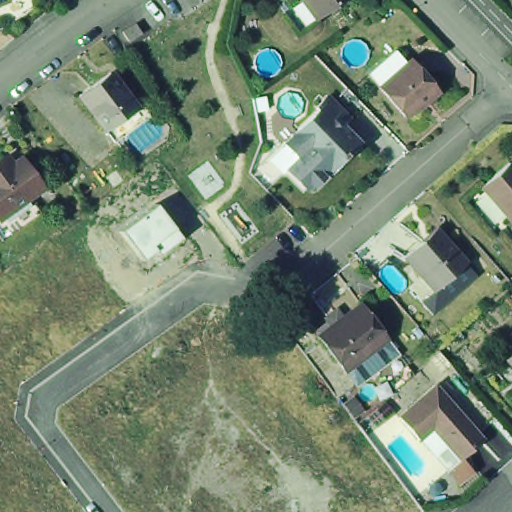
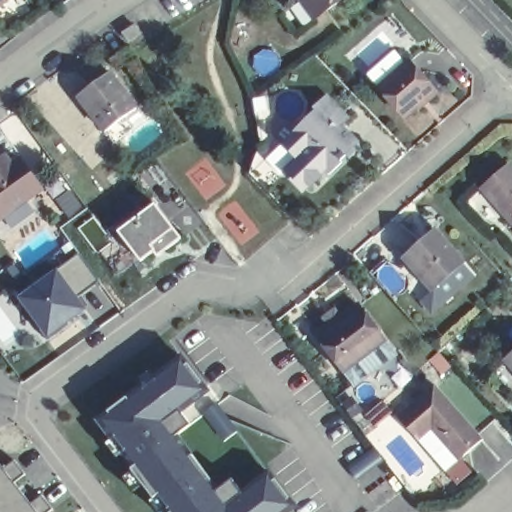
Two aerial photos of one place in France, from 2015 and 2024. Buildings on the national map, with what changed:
unchanged [(0,4),(0,0),(9,0),(0,4)]
unchanged [(317,17),(305,0),(341,0),(317,17)]
unchanged [(131,24),(136,33),(123,41),(118,32),(131,24)]
unchanged [(412,54),(438,84),(408,110),(381,80),(412,54)]
unchanged [(110,69),(136,104),(124,112),(106,125),(80,91),(96,80),(110,69)]
unchanged [(311,118),(309,116),(320,105),(341,126),(333,133),(350,150),(332,168),(329,166),(317,178),(284,144),(311,118)]
unchanged [(6,151),(13,160),(21,153),(42,183),(0,214),(0,156),(6,151)]
unchanged [(509,161),(512,165),(512,222),(481,186),(509,161)]
unchanged [(154,204),(173,228),(180,236),(157,254),(153,249),(142,258),(120,230),(154,204)]
unchanged [(437,227),(441,231),(465,259),(434,287),(422,274),(405,254),(423,239),(437,227)]
new [(78,253),(98,281),(78,296),(87,308),(47,339),(15,296),(56,267),(78,253)]
unchanged [(356,299),(381,332),(341,363),(314,329),(356,299)]
unchanged [(512,341),(512,368),(499,352),(512,341)]
new [(168,512),(156,495),(153,497),(131,467),(133,466),(96,419),(108,411),(128,397),(183,353),(188,363),(203,383),(211,392),(183,414),(191,425),(178,434),(193,454),(211,481),(218,491),(232,480),(241,492),(270,469),(276,478),(291,499),(299,507),(293,512),(168,512)]
unchanged [(430,382),(477,436),(454,457),(426,425),(413,437),(393,414),(430,382)]
new [(371,446),(384,461),(356,480),(345,465),(371,446)]
new [(21,472),(10,481),(26,501),(38,493),(48,507),(43,512),(0,512),(0,466),(10,458),(21,472)]

